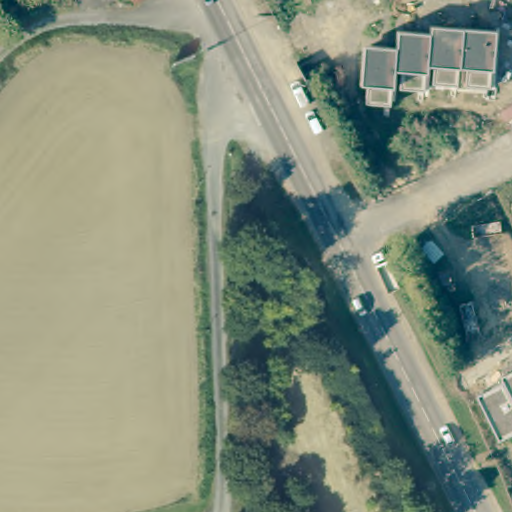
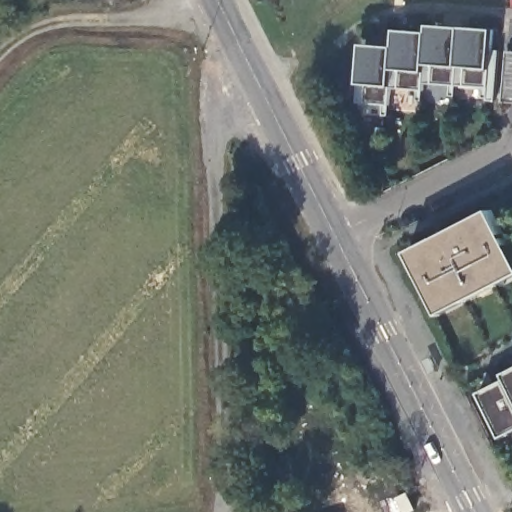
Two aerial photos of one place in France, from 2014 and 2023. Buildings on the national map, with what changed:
unchanged [(464,88),(464,68),(456,67),(455,87),(433,85),(434,66),(424,65),(423,72),(421,94),(399,92),(401,70),(391,69),(389,89),(387,106),(365,105),(366,86),(356,85),(360,45),(393,49),(395,32),(427,35),(428,27),(491,31),(488,71),(486,88),(464,88)]
new [(512,104),(505,104),(509,52),(512,52),(512,104)]
new [(512,250),(512,280),(441,316),(408,253),(492,211),(512,250)]
unchanged [(505,382),(502,377),(512,372),(512,434),(503,438),(478,396),(505,382)]

